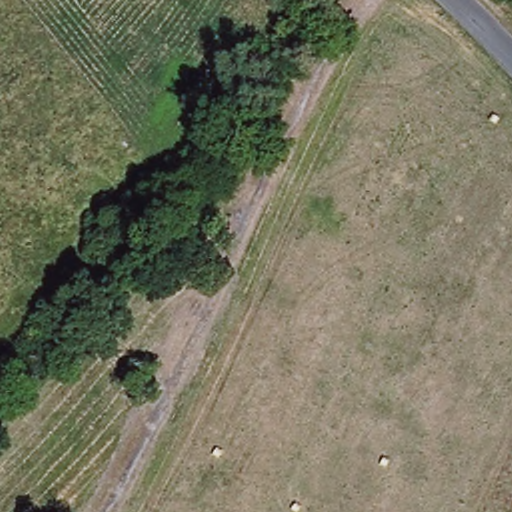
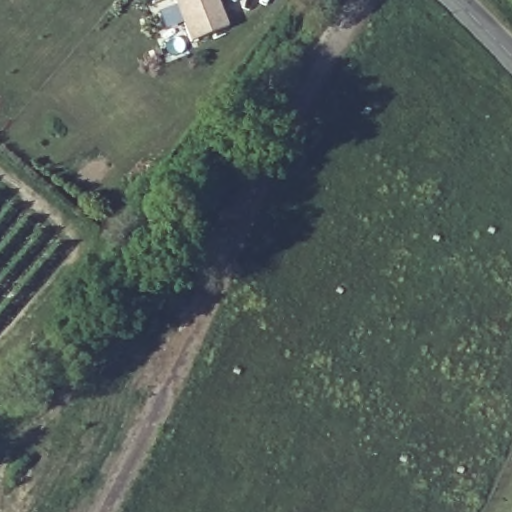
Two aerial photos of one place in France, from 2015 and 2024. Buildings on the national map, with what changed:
new [(188,42),(172,0),(217,0),(226,28),(188,42)]

